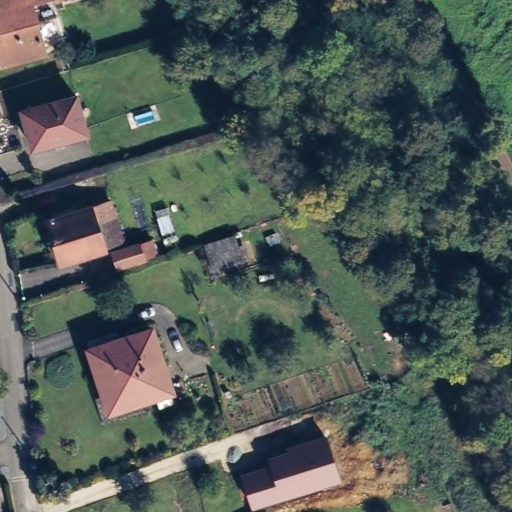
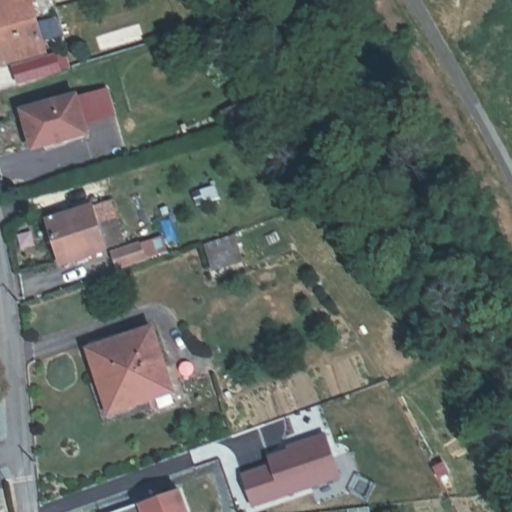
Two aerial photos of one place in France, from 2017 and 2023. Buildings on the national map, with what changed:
unchanged [(47,3),(25,9),(40,61),(1,72),(0,68),(0,0),(46,0),(47,3)]
unchanged [(52,147),(28,154),(17,117),(70,102),(80,139),(82,144),(53,152),(52,147)]
unchanged [(242,105),(250,121),(230,128),(222,113),(242,105)]
unchanged [(91,214),(106,209),(119,250),(105,255),(61,269),(48,226),(90,212),(91,214)]
unchanged [(235,243),(242,266),(211,275),(205,252),(235,243)]
unchanged [(105,414),(85,353),(146,332),(165,388),(126,402),(127,407),(105,414)]
unchanged [(252,508),(240,474),(268,464),(265,458),(288,449),(286,445),(325,432),(342,478),(252,508)]
new [(189,512),(120,512),(180,490),(189,512)]
unchanged [(0,506),(0,491),(5,505),(0,506)]

